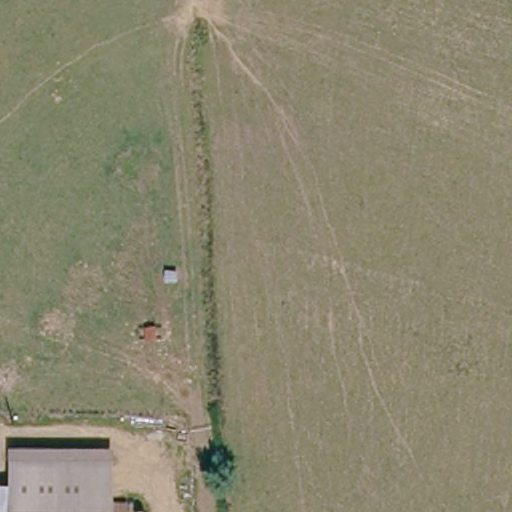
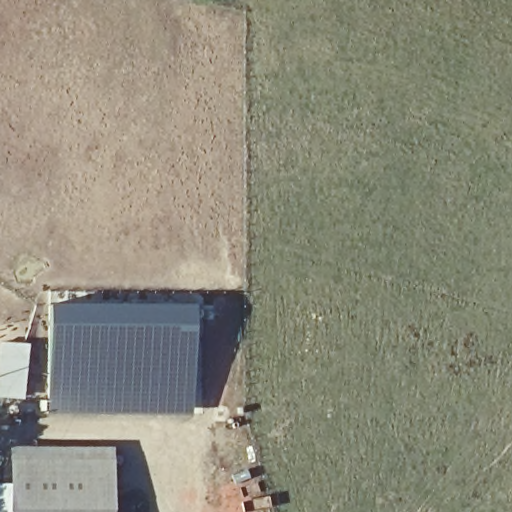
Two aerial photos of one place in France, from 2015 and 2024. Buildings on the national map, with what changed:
new [(191,414),(46,415),(46,304),(192,304),(191,414)]
new [(29,344),(23,400),(0,398),(0,341),(29,344)]
unchanged [(5,512),(0,512),(0,477),(5,476),(5,444),(110,446),(110,496),(5,494),(5,512)]
unchanged [(110,496),(109,512),(5,512),(5,494),(110,496)]

